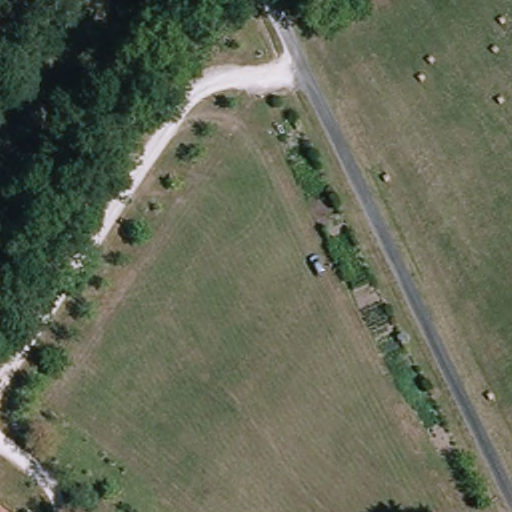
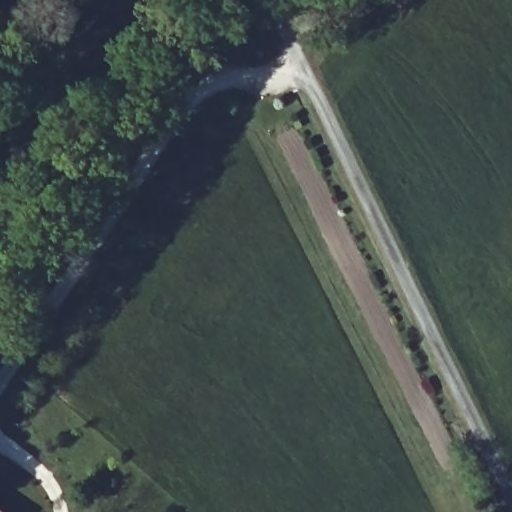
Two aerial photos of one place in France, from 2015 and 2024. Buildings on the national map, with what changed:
unchanged [(0,507),(6,512),(0,512),(0,507)]

